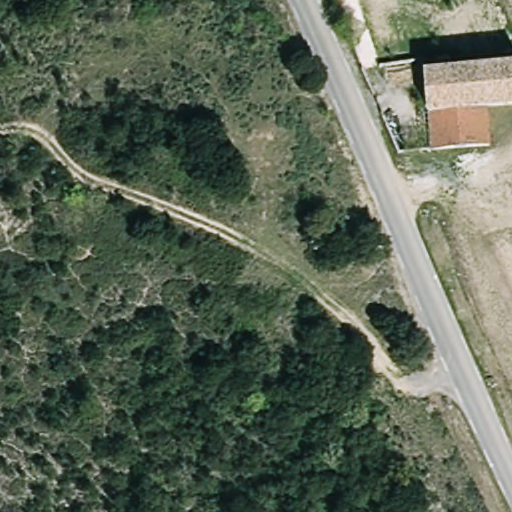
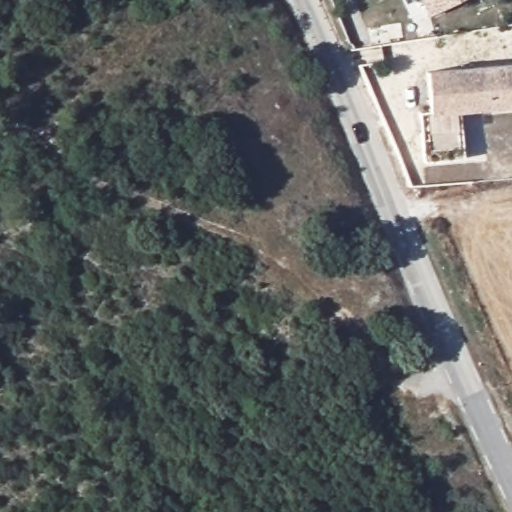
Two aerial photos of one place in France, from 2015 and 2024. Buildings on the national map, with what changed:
new [(430,16),(421,0),(461,0),(430,16)]
unchanged [(450,58),(451,66),(512,64),(512,106),(485,107),(487,147),(431,150),(424,60),(450,58)]

